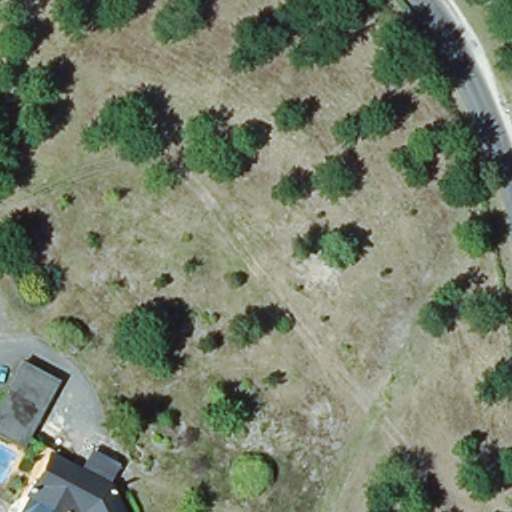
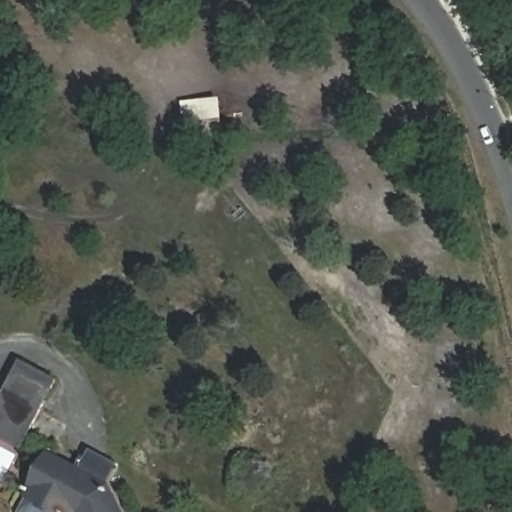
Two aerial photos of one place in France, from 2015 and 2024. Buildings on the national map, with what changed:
unchanged [(0,412),(25,367),(53,382),(21,442),(17,451),(0,442),(0,412)]
unchanged [(125,512),(47,512),(25,500),(54,455),(116,492),(125,512)]

